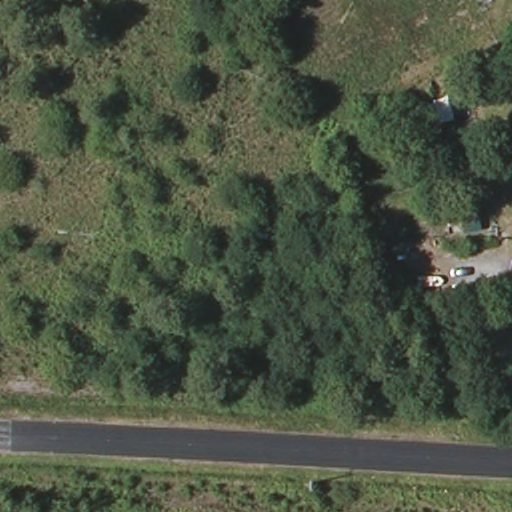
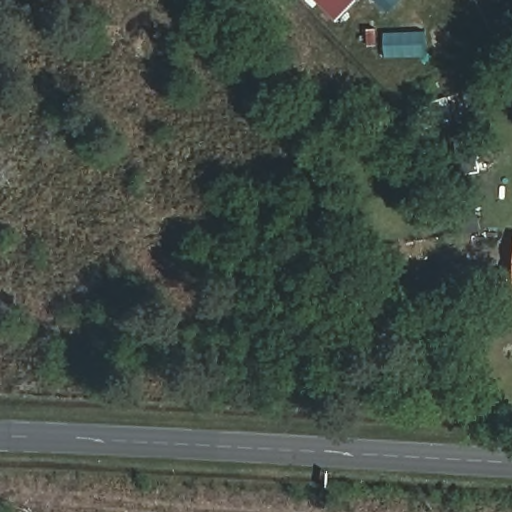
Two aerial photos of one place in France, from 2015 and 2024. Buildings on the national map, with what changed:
new [(356,0),(337,19),(318,0),(356,0)]

